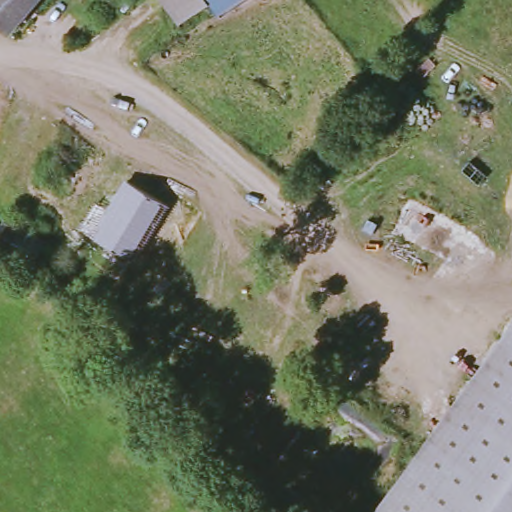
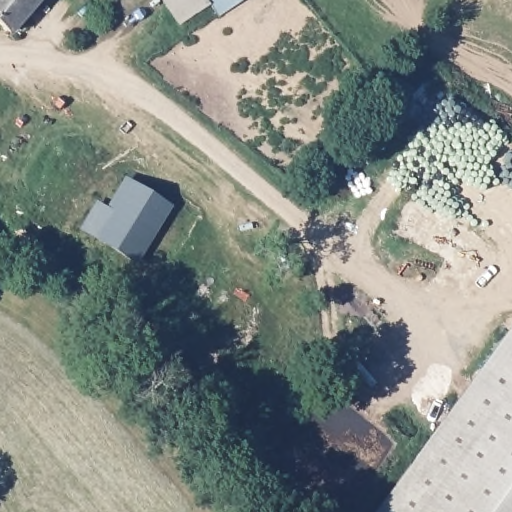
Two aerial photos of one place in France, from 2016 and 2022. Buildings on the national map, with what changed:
unchanged [(22,35),(0,17),(0,0),(55,0),(22,35)]
unchanged [(187,20),(173,0),(217,0),(187,20)]
unchanged [(227,10),(217,0),(241,0),(227,10)]
unchanged [(162,206),(131,258),(94,236),(125,181),(162,206)]
unchanged [(33,265),(0,248),(0,218),(3,212),(46,235),(33,265)]
unchanged [(381,512),(512,332),(512,512),(381,512)]

